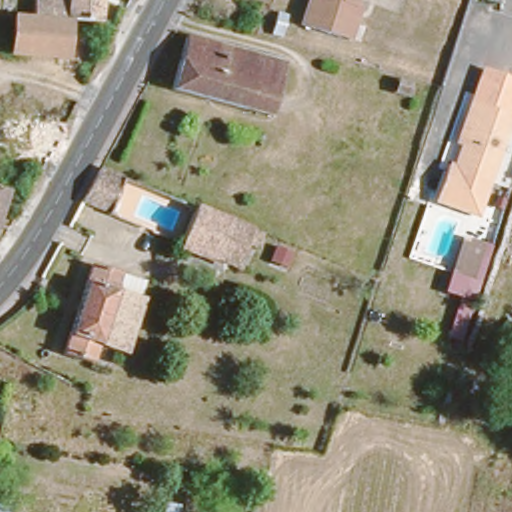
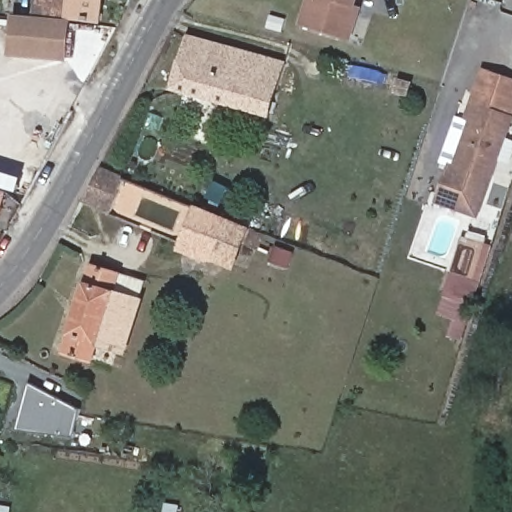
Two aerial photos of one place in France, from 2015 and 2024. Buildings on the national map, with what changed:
unchanged [(101,0),(100,17),(68,15),(68,17),(31,15),(33,0),(101,0)]
unchanged [(337,40),(294,26),(302,0),(350,0),(346,11),(350,12),(341,41),(337,40)]
unchanged [(0,51),(0,20),(0,14),(31,15),(68,17),(65,55),(0,51)]
unchanged [(185,34),(254,52),(240,106),(171,87),(185,34)]
unchanged [(254,52),(280,59),(266,113),(240,106),(254,52)]
unchanged [(512,77),(512,106),(477,213),(437,200),(449,164),(454,165),(469,118),(464,116),(480,66),(512,77)]
unchanged [(101,167),(102,166),(119,172),(105,207),(83,198),(101,167)]
unchanged [(6,186),(0,204),(0,184),(6,186)]
unchanged [(247,225),(228,266),(177,247),(193,203),(247,225)]
unchanged [(459,234),(490,245),(479,284),(448,273),(459,234)]
unchanged [(88,261),(116,271),(110,288),(98,322),(125,331),(117,352),(92,344),(86,362),(56,351),(88,261)]
unchanged [(98,322),(110,288),(137,297),(125,331),(98,322)]
new [(79,410),(74,437),(16,428),(29,385),(79,410)]

